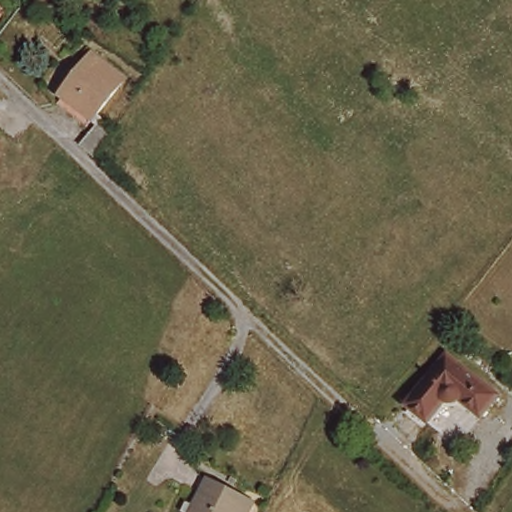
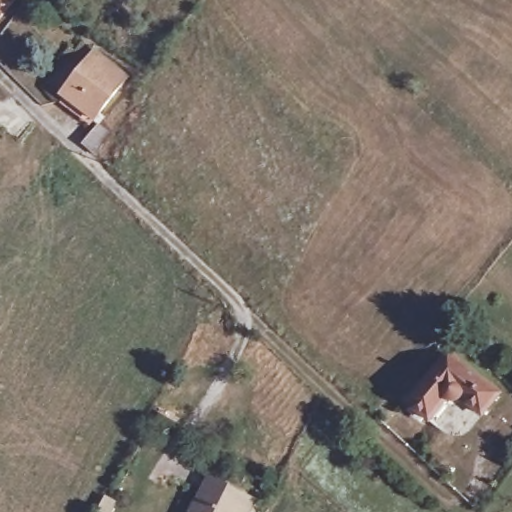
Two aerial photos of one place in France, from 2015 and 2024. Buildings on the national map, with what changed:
unchanged [(0,1),(0,0),(1,0),(0,1)]
unchanged [(67,95),(96,50),(130,71),(100,119),(67,95)]
unchanged [(460,398),(452,400),(434,423),(412,405),(452,355),(502,395),(485,416),(460,398)]
unchanged [(201,505),(214,480),(256,505),(252,512),(186,512),(191,501),(201,505)]

